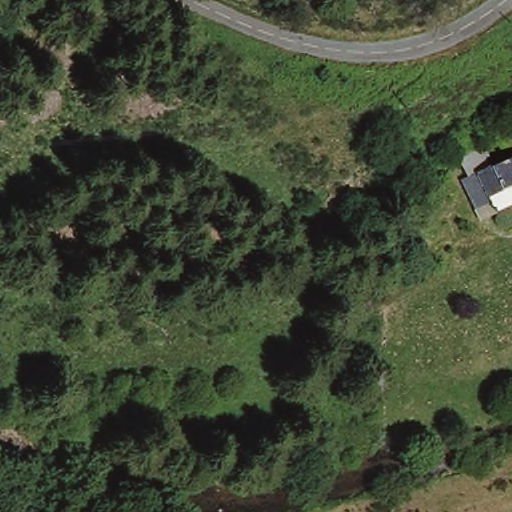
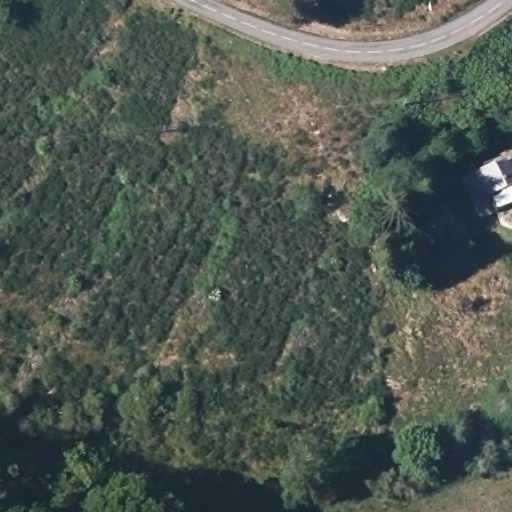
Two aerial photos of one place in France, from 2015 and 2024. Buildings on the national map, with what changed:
unchanged [(508,194),(512,203),(477,222),(459,184),(465,179),(457,159),(486,142),(495,162),(512,155),(512,192),(508,194)]

